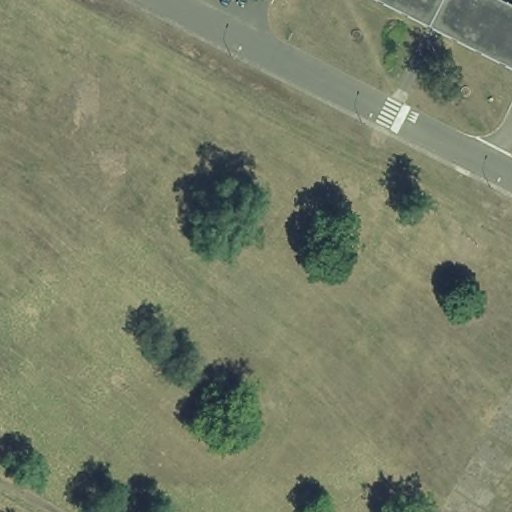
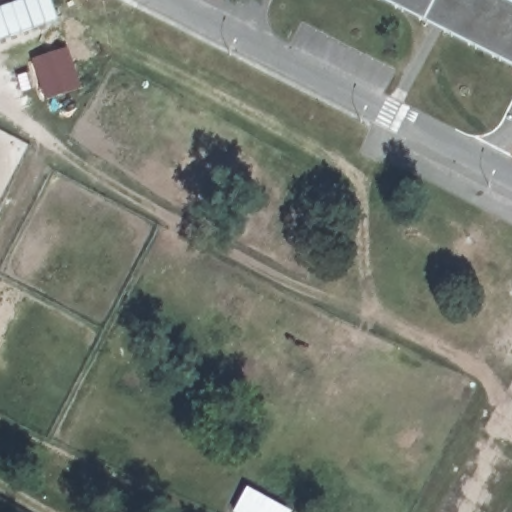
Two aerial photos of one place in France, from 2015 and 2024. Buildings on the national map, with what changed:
new [(58,19),(0,39),(0,7),(20,0),(50,0),(58,19)]
unchanged [(512,4),(512,66),(383,0),(504,0),(512,4)]
new [(67,47),(81,89),(44,100),(30,59),(67,47)]
new [(291,511),(291,512),(235,512),(246,488),(291,511)]

